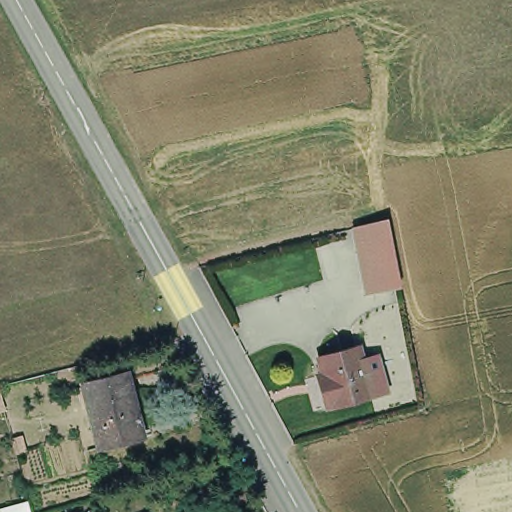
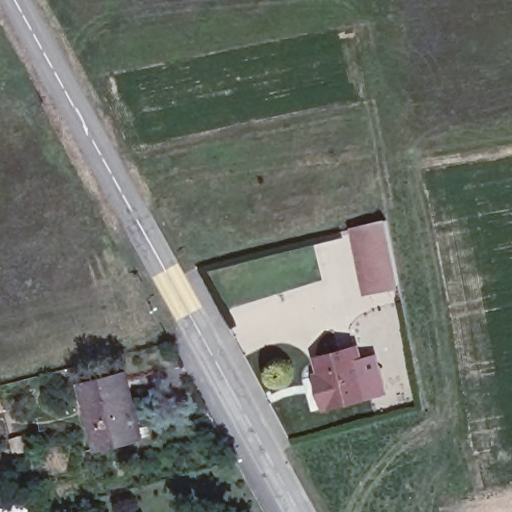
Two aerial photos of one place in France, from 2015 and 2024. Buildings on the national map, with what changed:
unchanged [(399,290),(368,297),(367,296),(355,233),(367,230),(385,224),(391,254),(399,289),(399,290)]
unchanged [(300,378),(310,375),(317,373),(311,355),(350,344),(354,356),(367,352),(378,387),(364,391),(365,395),(327,407),(325,404),(319,406),(309,409),(300,378)]
unchanged [(120,373),(135,436),(92,447),(75,384),(120,373)]

